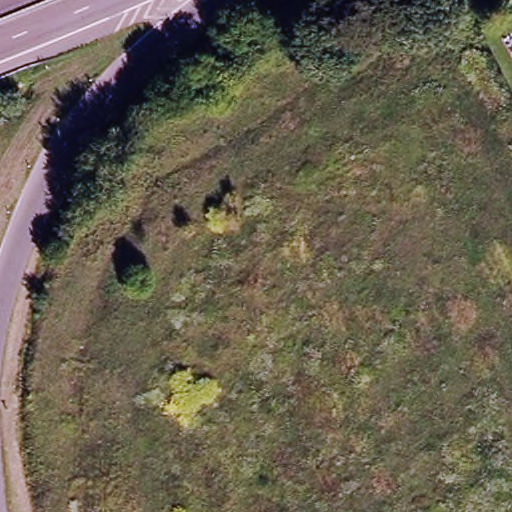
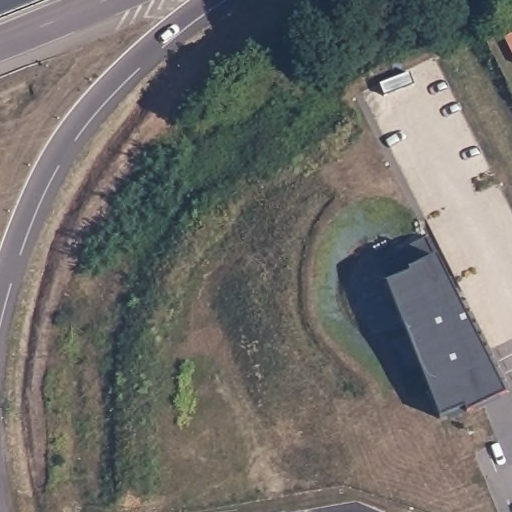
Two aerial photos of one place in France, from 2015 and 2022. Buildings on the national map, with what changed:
new [(467,415),(465,411),(440,421),(380,262),(426,239),(448,283),(451,282),(464,313),(507,400),(467,415)]

